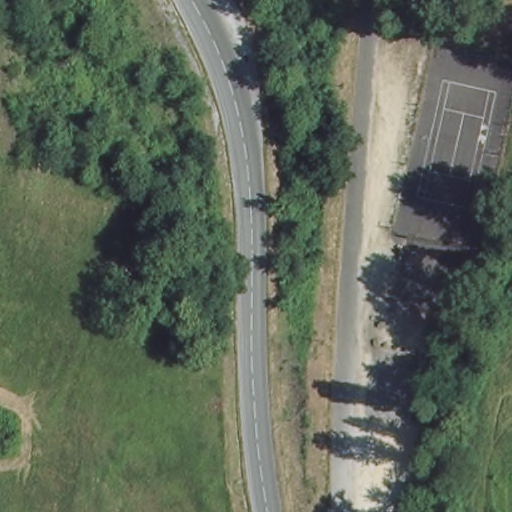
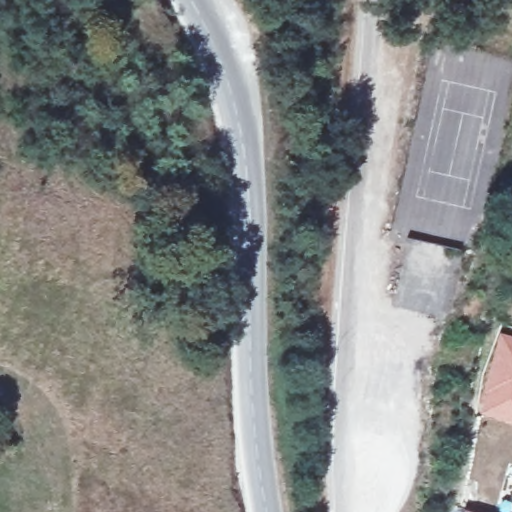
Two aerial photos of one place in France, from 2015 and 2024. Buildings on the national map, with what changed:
new [(500,331),(512,334),(512,423),(478,414),(500,331)]

